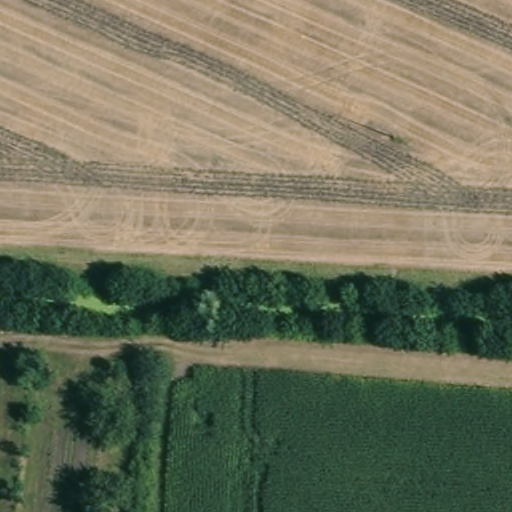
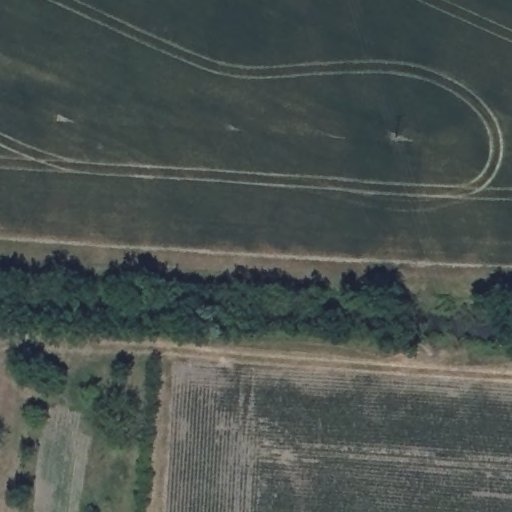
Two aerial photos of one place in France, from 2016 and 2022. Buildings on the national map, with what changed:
unchanged [(44,358),(41,381),(22,380),(23,358),(44,358)]

